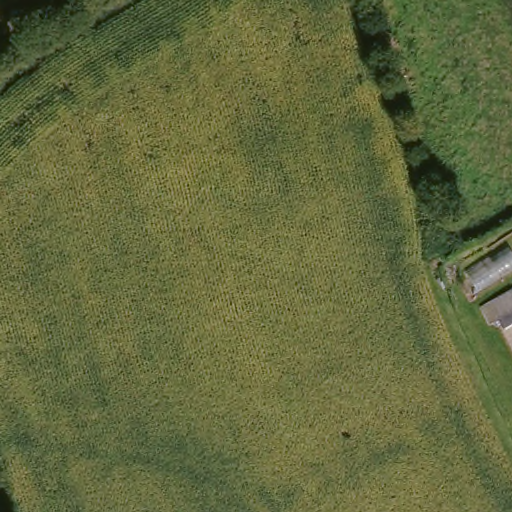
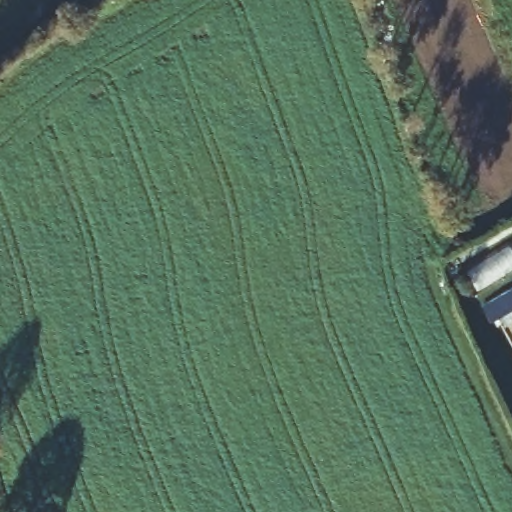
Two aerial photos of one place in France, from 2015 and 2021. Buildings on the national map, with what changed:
unchanged [(512,305),(512,316),(486,329),(475,308),(505,292),(512,305)]

